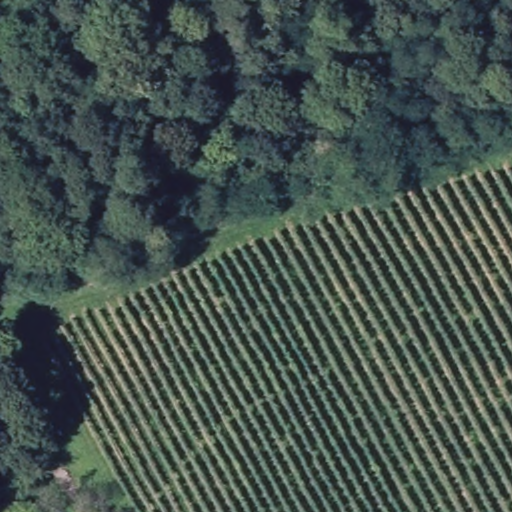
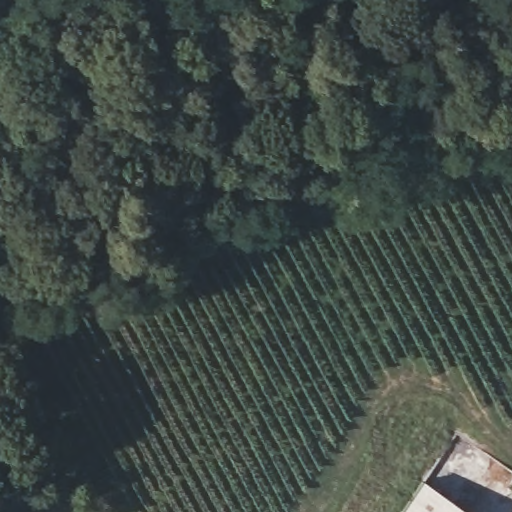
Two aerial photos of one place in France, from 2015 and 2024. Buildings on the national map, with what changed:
new [(423,480),(468,512),(401,512),(423,480)]

